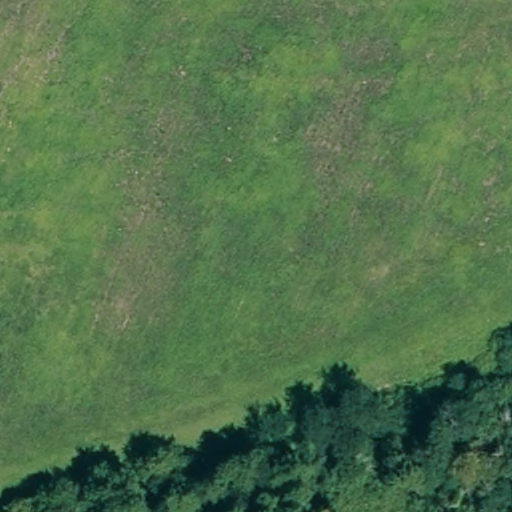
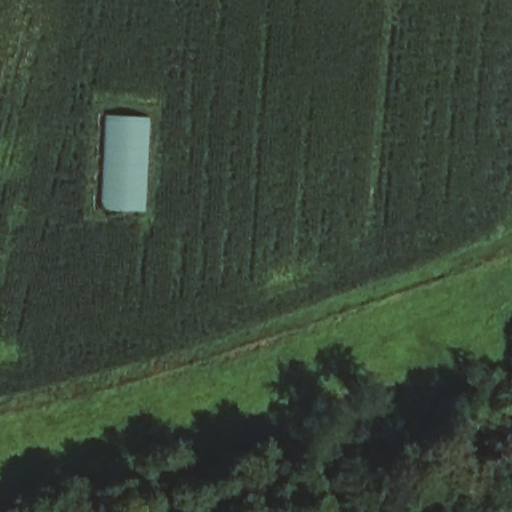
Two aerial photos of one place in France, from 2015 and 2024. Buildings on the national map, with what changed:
new [(143,124),(138,170),(147,171),(139,212),(99,209),(101,134),(103,133),(102,120),(111,119),(143,124)]

